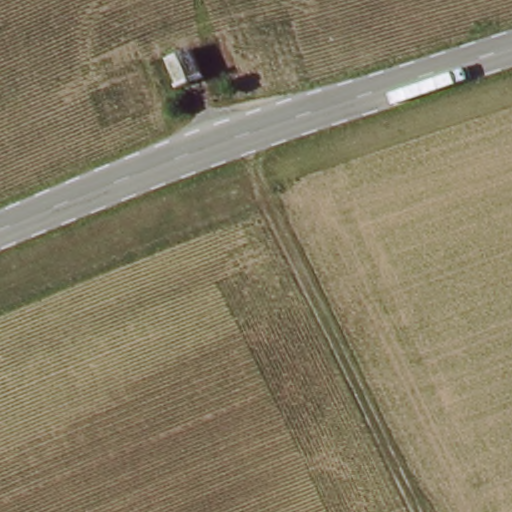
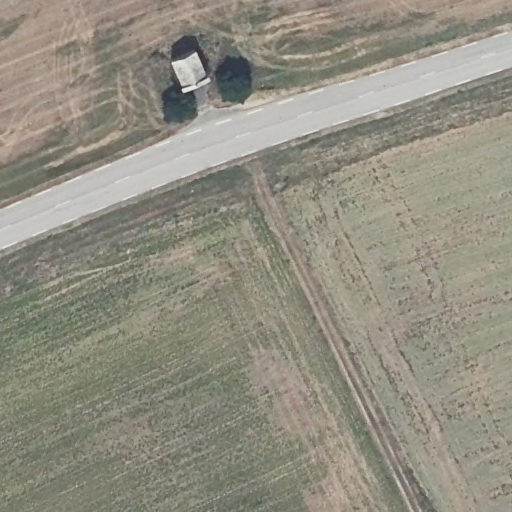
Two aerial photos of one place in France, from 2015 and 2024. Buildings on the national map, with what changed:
unchanged [(192,47),(205,76),(180,86),(168,56),(192,47)]

